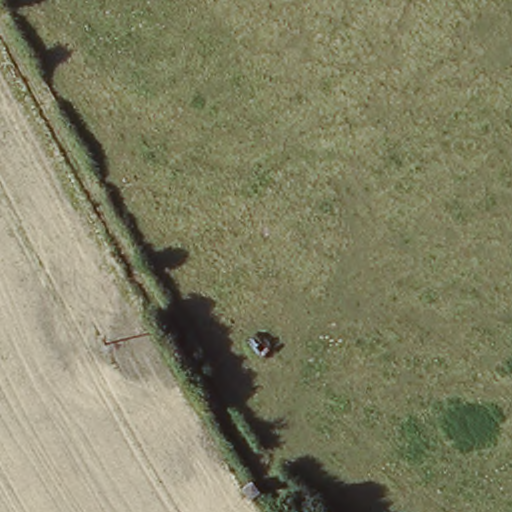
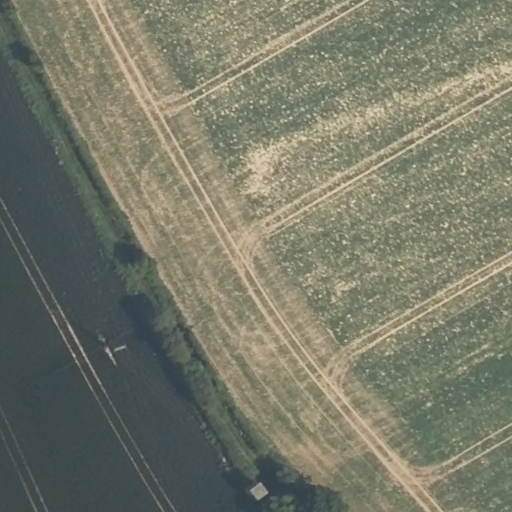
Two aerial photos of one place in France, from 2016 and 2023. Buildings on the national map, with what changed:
[]

